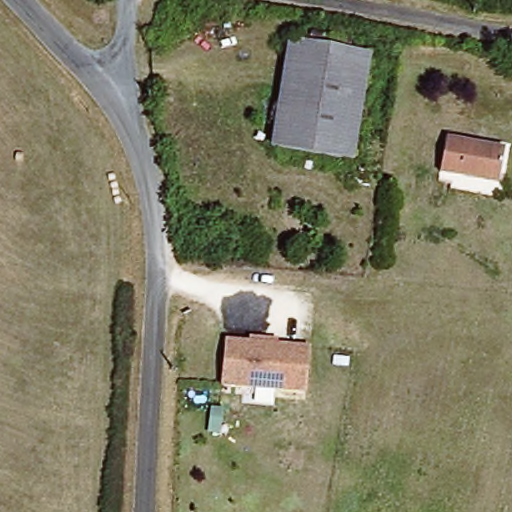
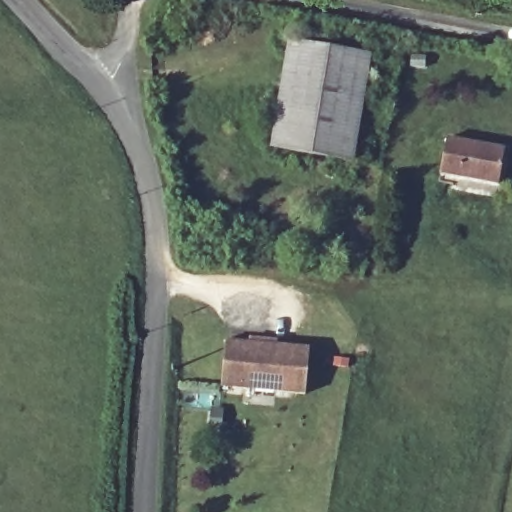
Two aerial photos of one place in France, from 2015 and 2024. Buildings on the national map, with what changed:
unchanged [(273,149),(286,44),(366,53),(353,159),(273,149)]
unchanged [(497,186),(440,174),(447,139),(504,150),(497,186)]
unchanged [(227,342),(248,343),(248,338),(279,341),(279,345),(309,347),(305,397),(222,387),(227,342)]

